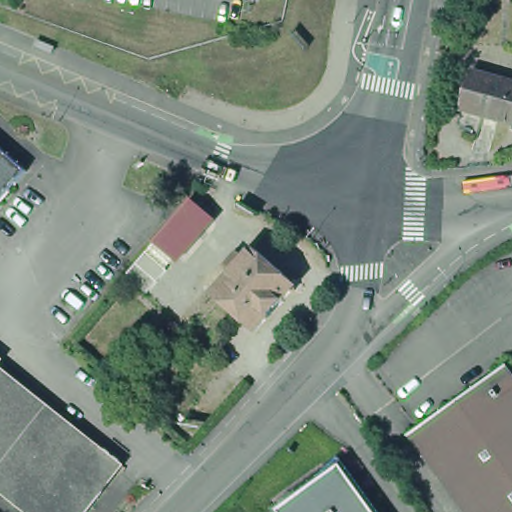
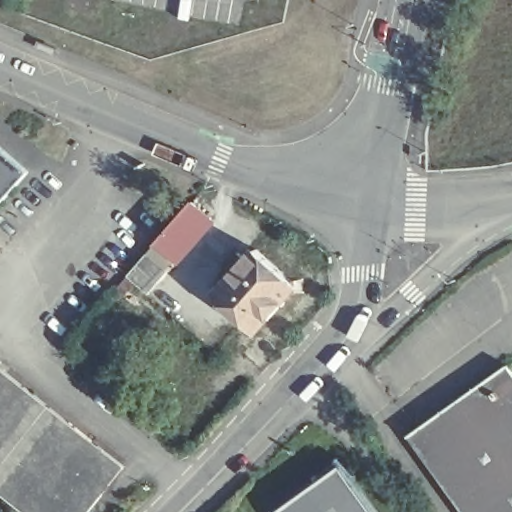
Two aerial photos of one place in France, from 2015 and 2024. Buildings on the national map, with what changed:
demolished [(480,121),(462,116),(472,75),(490,80),(512,87),(512,129),(511,129),(480,121)]
unchanged [(0,202),(0,156),(23,176),(0,202)]
unchanged [(218,220),(179,260),(131,303),(115,289),(156,239),(196,196),(218,220)]
unchanged [(257,340),(216,303),(244,273),(255,260),(256,259),(297,295),(257,340)]
unchanged [(410,433),(507,363),(512,370),(512,512),(467,512),(410,433)]
unchanged [(0,493),(0,371),(125,470),(92,512),(24,512),(0,493)]
unchanged [(275,510),(317,478),(314,475),(332,459),(335,456),(352,475),(348,478),(372,512),(276,512),(275,510)]

